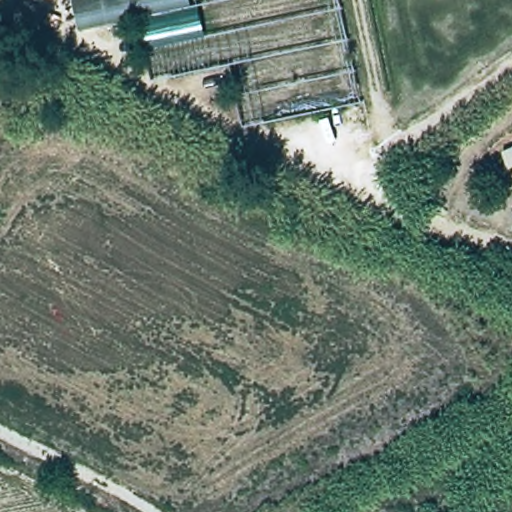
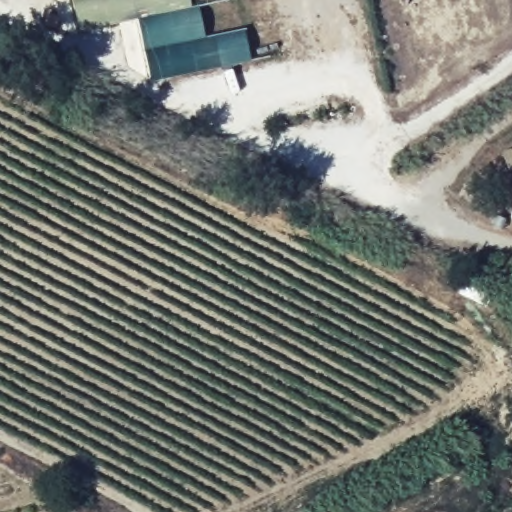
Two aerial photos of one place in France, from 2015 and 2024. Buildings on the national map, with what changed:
unchanged [(145,51),(139,18),(81,29),(75,0),(190,0),(200,41),(145,51)]

